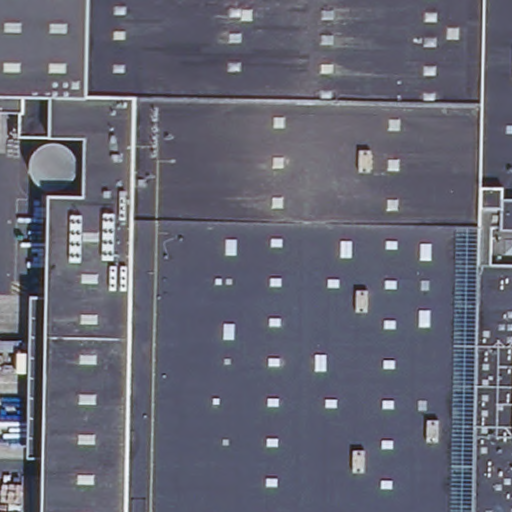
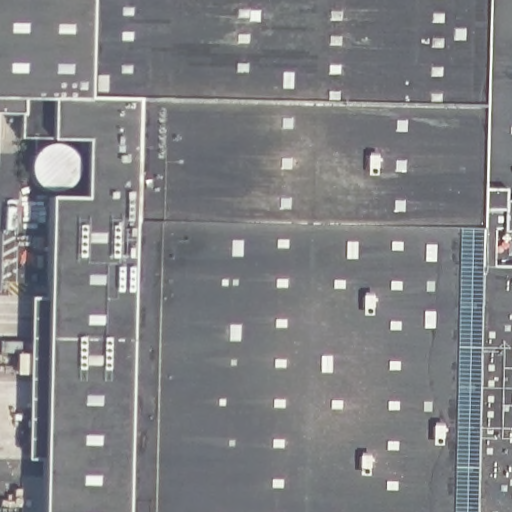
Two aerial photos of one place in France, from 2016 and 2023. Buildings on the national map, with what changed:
unchanged [(43,458),(29,459),(31,298),(48,294),(49,196),(85,196),(86,138),(51,138),(21,138),(20,115),(0,112),(0,0),(512,0),(512,512),(41,512),(43,458)]

